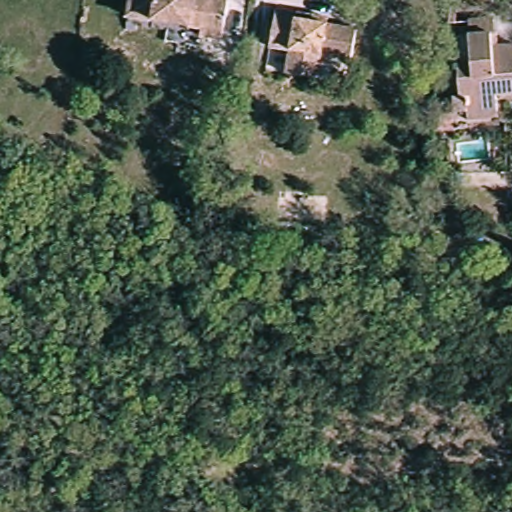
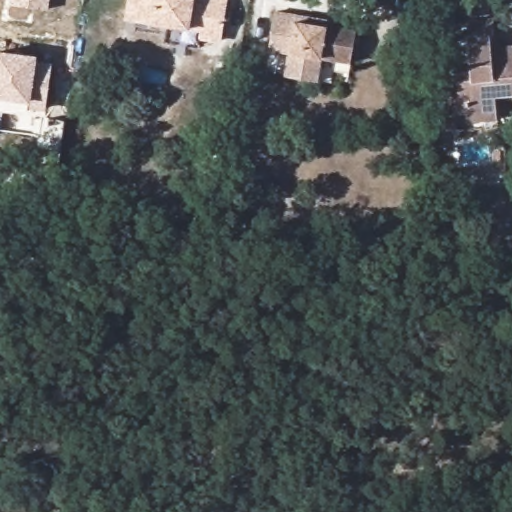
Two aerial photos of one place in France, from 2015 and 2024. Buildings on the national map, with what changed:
new [(48,10),(9,3),(9,0),(50,0),(48,10)]
unchanged [(213,40),(193,37),(194,31),(158,26),(120,20),(124,0),(220,0),(213,40)]
unchanged [(325,16),(324,28),(355,30),(353,57),(319,55),(318,77),(283,73),(285,50),(270,49),(274,13),(325,16)]
unchanged [(465,35),(492,34),(493,49),(512,49),(512,98),(490,100),(490,119),(464,120),(463,102),(455,102),(452,70),(466,69),(465,35)]
new [(35,61),(53,63),(46,108),(28,106),(27,110),(0,106),(0,48),(38,53),(35,61)]
unchanged [(432,117),(451,119),(449,133),(430,131),(432,117)]

